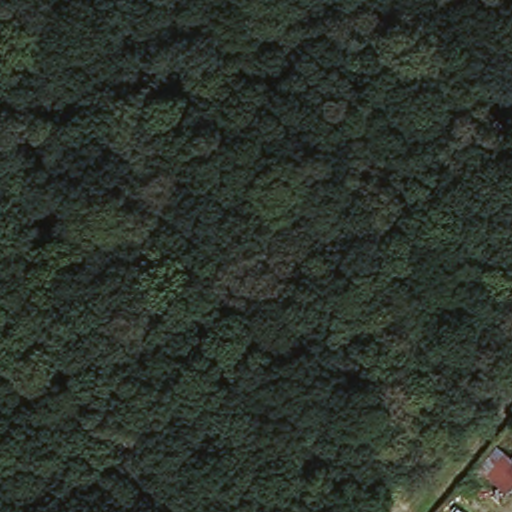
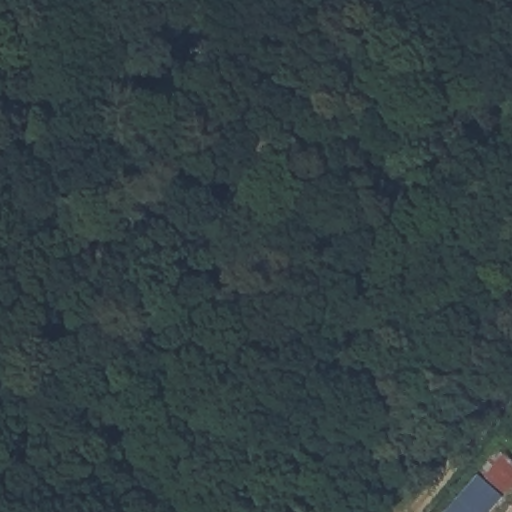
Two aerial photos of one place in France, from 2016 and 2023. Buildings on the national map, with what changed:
unchanged [(506,452),(512,458),(512,484),(508,488),(489,471),(506,452)]
new [(479,477),(505,502),(495,512),(449,512),(479,477)]

